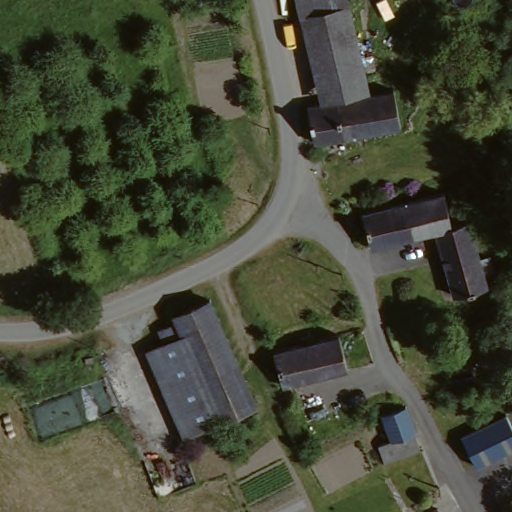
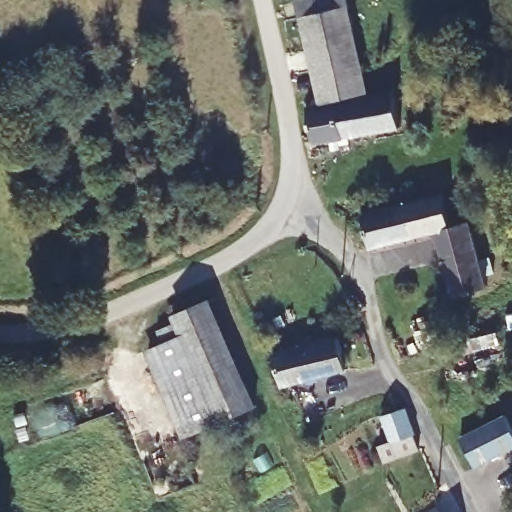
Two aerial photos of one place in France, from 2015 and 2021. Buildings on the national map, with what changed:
unchanged [(353,9),(307,18),(305,0),(351,0),(353,9)]
unchanged [(353,9),(369,94),(323,104),(307,18),(353,9)]
unchanged [(400,92),(407,127),(320,142),(313,109),(323,107),(400,92)]
unchanged [(450,195),(460,226),(475,222),(492,285),(458,296),(450,269),(439,233),(377,249),(369,217),(450,195)]
unchanged [(219,307),(262,410),(227,425),(201,361),(187,328),(184,321),(219,307)]
unchanged [(433,312),(447,345),(418,358),(424,372),(408,379),(388,330),(433,312)]
unchanged [(166,375),(159,356),(173,350),(168,336),(187,328),(201,361),(172,373),(166,375)]
unchanged [(338,338),(345,366),(281,383),(274,355),(338,338)]
unchanged [(201,361),(227,425),(197,437),(172,373),(201,361)]
unchanged [(385,462),(378,445),(392,440),(383,418),(405,407),(414,430),(423,447),(385,462)]
unchanged [(512,418),(512,449),(476,463),(465,435),(511,416),(512,418)]
unchanged [(178,443),(193,482),(162,496),(147,456),(178,443)]
unchanged [(445,512),(434,512),(442,507),(445,512)]

